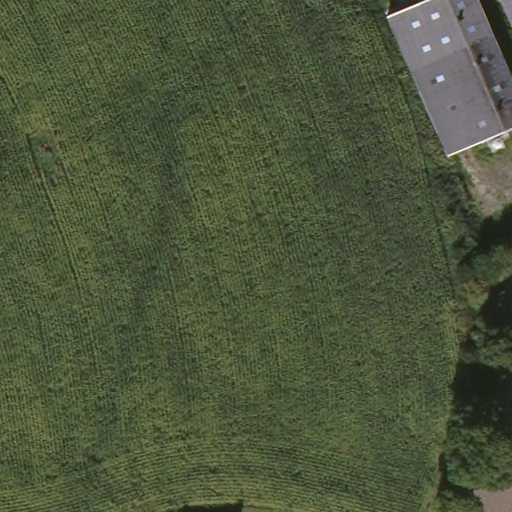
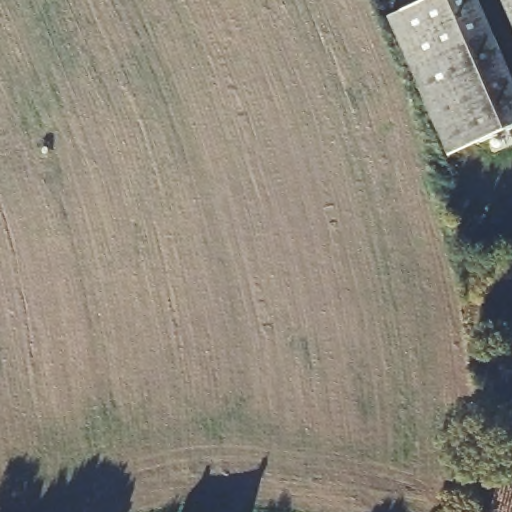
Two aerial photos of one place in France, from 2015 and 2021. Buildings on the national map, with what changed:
unchanged [(512,94),(512,125),(445,154),(386,16),(424,0),(472,0),(512,94)]
unchanged [(512,17),(505,0),(512,0),(512,17)]

